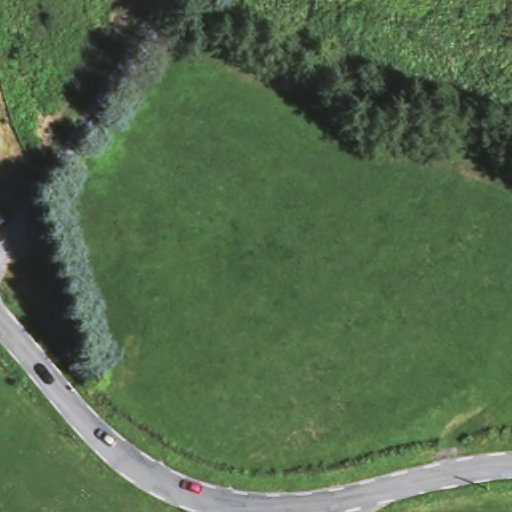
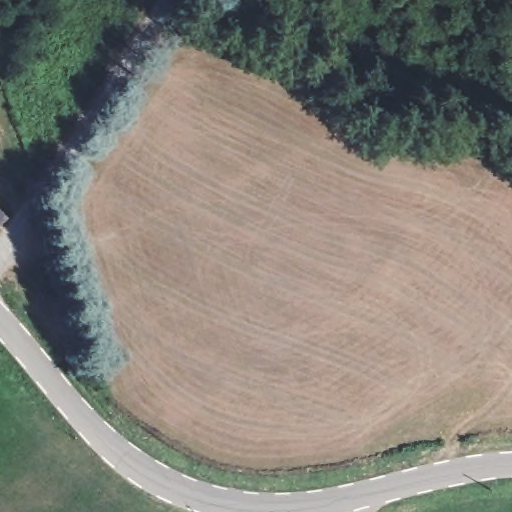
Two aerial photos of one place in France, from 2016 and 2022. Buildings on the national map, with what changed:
unchanged [(10,213),(0,222),(0,202),(10,213)]

